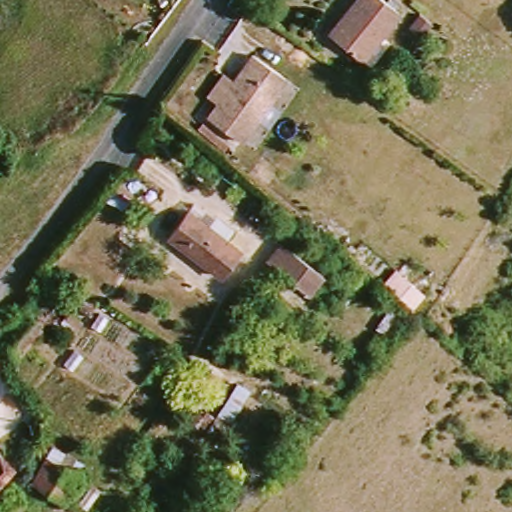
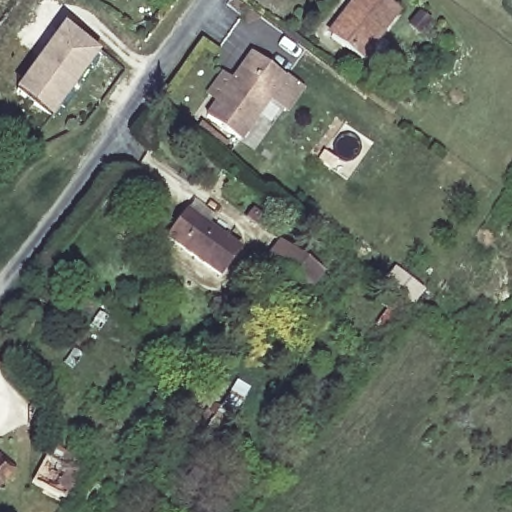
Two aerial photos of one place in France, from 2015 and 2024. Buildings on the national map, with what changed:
unchanged [(359,0),(381,0),(398,14),(362,61),(331,37),(359,0)]
new [(65,29),(99,53),(51,118),(33,104),(17,92),(25,81),(65,29)]
unchanged [(213,116),(260,55),(292,80),(245,141),(213,116)]
unchanged [(283,227),(275,220),(282,212),(290,219),(283,227)]
unchanged [(172,236),(192,214),(239,257),(219,279),(172,236)]
unchanged [(309,295),(271,262),(282,248),(321,282),(309,295)]
unchanged [(84,302),(72,317),(55,302),(5,371),(0,366),(0,332),(40,277),(61,292),(65,288),(84,302)]
unchanged [(72,317),(85,327),(73,343),(65,334),(62,330),(72,317)]
unchanged [(42,454),(77,477),(61,500),(25,480),(42,454)]
unchanged [(15,470),(0,487),(0,459),(15,470)]

